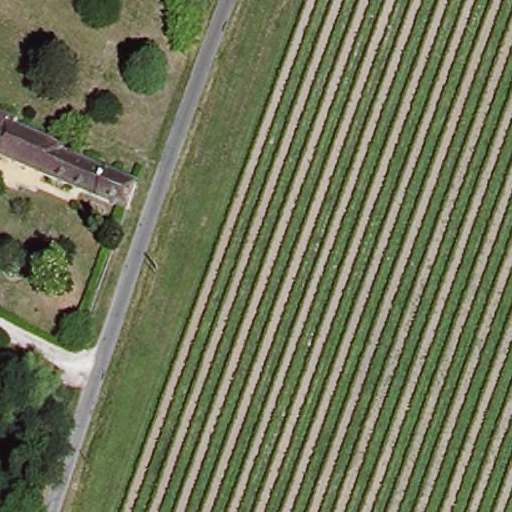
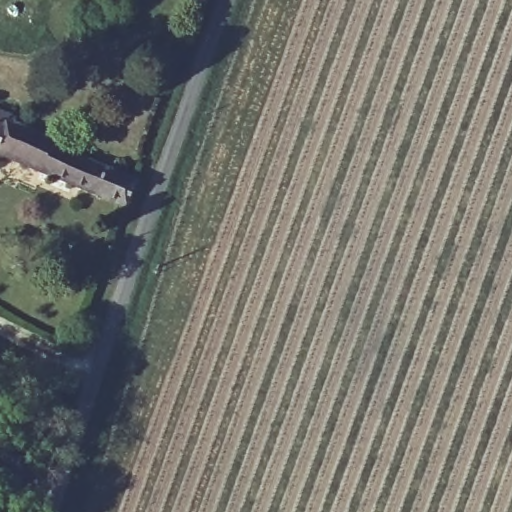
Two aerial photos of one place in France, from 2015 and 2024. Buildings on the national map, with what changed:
unchanged [(127,206),(0,155),(0,105),(15,111),(13,120),(62,142),(58,149),(137,179),(127,206)]

